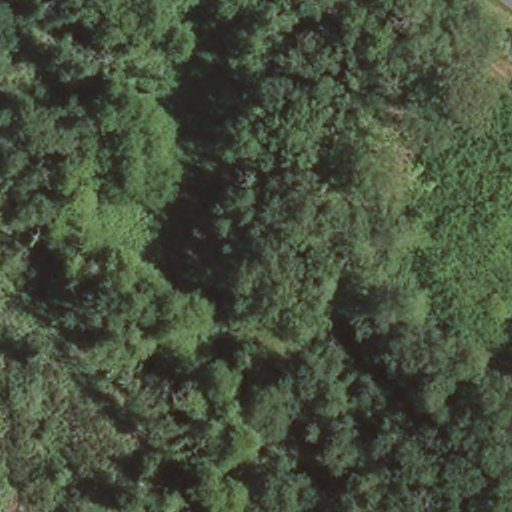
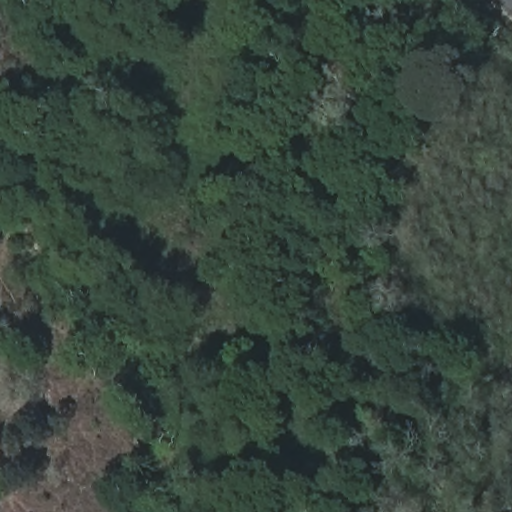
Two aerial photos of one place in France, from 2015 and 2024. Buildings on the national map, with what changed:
unchanged [(511,90),(512,80),(512,79),(512,95),(511,90)]

